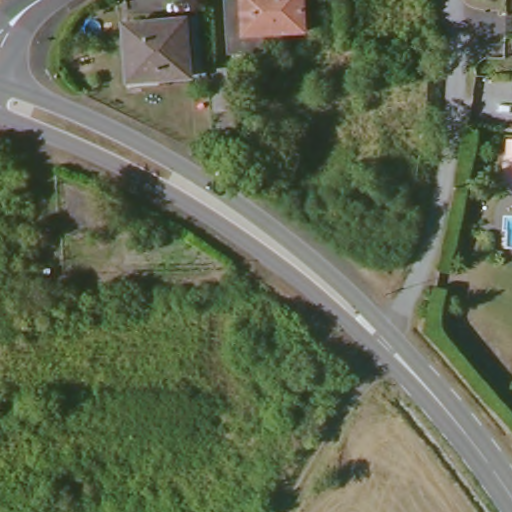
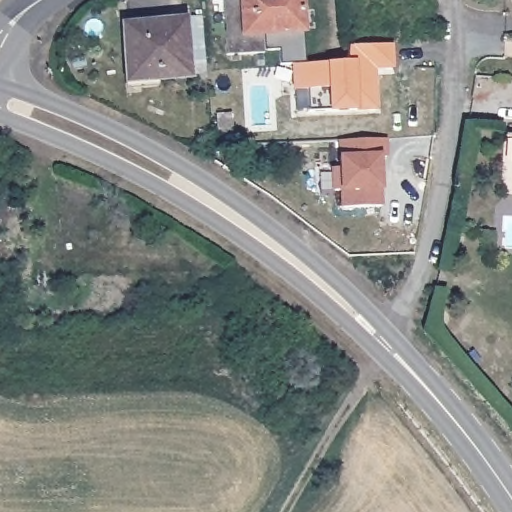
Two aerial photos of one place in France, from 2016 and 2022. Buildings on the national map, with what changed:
unchanged [(262,51),(227,54),(225,2),(242,1),(241,0),(299,0),(300,31),(262,33),(262,51)]
new [(357,113),(330,113),(308,113),(307,91),(292,91),(291,64),(280,65),(280,49),(262,46),(262,33),(300,31),(299,0),(305,0),(307,36),(302,36),(305,66),(349,63),(349,49),(392,45),(393,70),(374,73),(377,111),(357,110),(357,113)]
unchanged [(130,81),(128,25),(182,21),(184,76),(130,81)]
new [(220,115),(232,115),(232,146),(220,146),(220,115)]
new [(387,159),(381,158),(382,192),(383,207),(340,209),(339,192),(332,192),(332,185),(340,184),(339,158),(338,142),(387,140),(387,159)]

